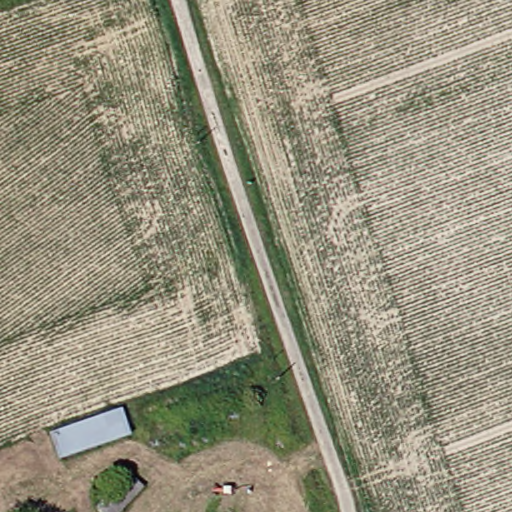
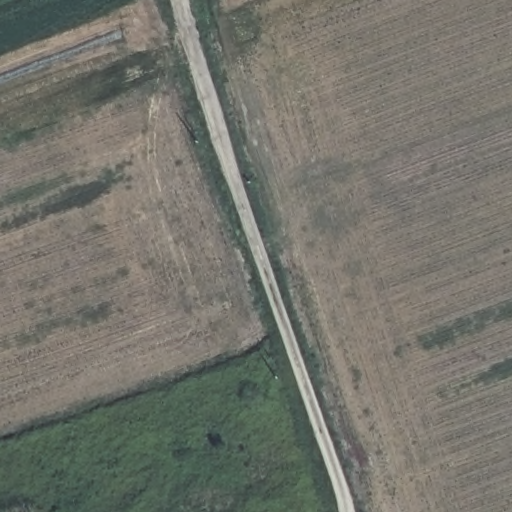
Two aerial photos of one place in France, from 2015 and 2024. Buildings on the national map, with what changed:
demolished [(42,432),(113,406),(122,432),(50,457),(42,432)]

